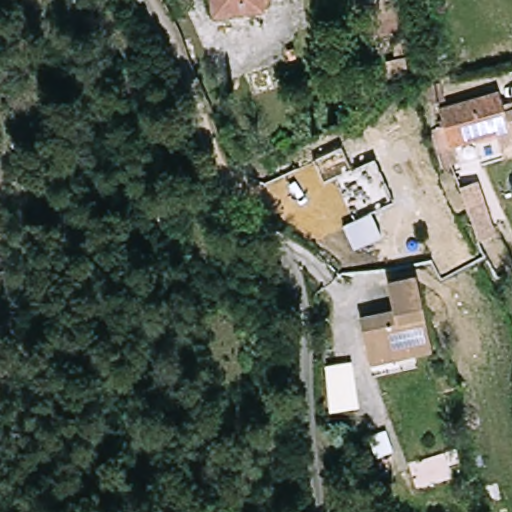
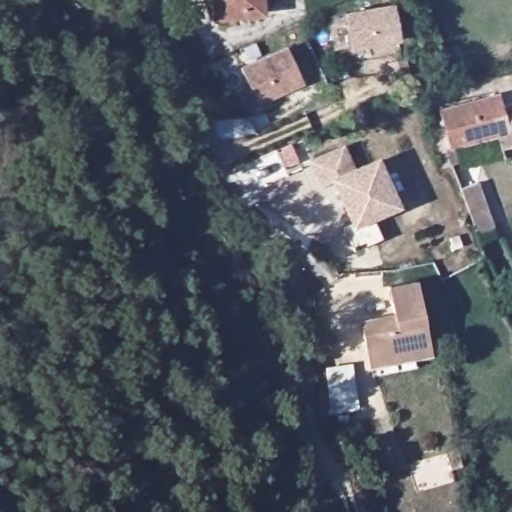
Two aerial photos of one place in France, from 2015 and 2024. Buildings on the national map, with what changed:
unchanged [(263,0),(264,10),(216,19),(213,0),(263,0)]
new [(402,41),(349,53),(340,13),(393,2),(402,41)]
new [(287,46),(304,85),(258,105),(241,68),(287,46)]
unchanged [(512,89),(512,133),(511,130),(464,143),(469,163),(453,167),(444,124),(450,122),(458,120),(454,106),(512,89)]
new [(358,165),(378,156),(401,207),(373,220),(382,237),(354,250),(344,229),(351,226),(331,184),(320,188),(308,161),(344,145),(358,165)]
new [(461,189),(479,183),(497,238),(479,243),(461,189)]
unchanged [(371,365),(367,344),(362,321),(374,318),(396,314),(390,286),(417,281),(432,353),(415,356),(391,361),(371,365)]
unchanged [(347,369),(353,409),(331,411),(330,370),(347,369)]

